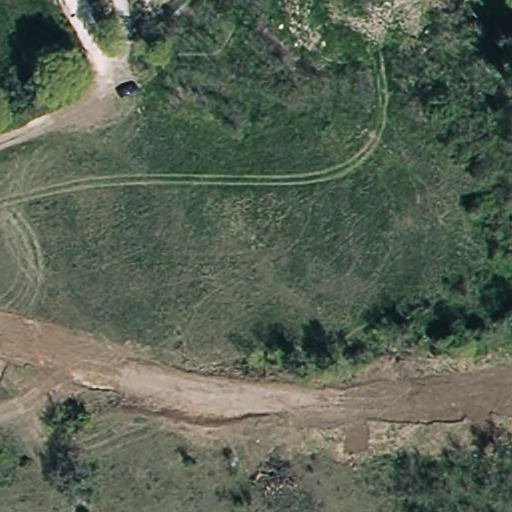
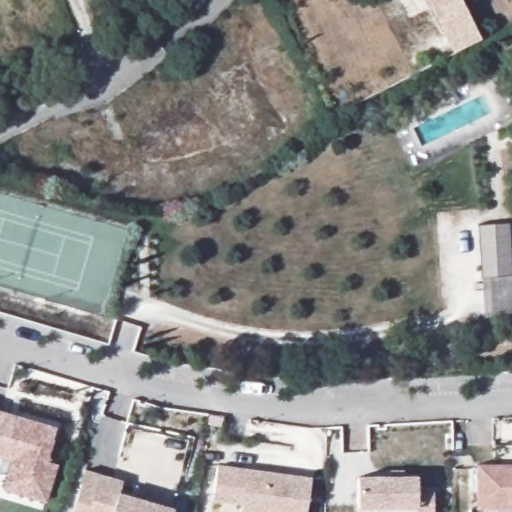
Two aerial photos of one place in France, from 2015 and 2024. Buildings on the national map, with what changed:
new [(480,39),(453,52),(430,9),(428,10),(422,0),(460,0),(480,39)]
demolished [(451,32),(432,0),(456,0),(469,22),(451,32)]
new [(510,233),(512,275),(512,286),(481,287),(479,235),(510,233)]
new [(512,286),(512,325),(483,326),(481,287),(512,286)]
new [(16,417),(55,429),(46,461),(56,464),(45,501),(4,489),(12,461),(0,457),(0,413),(7,415),(16,417)]
unchanged [(311,480),(306,512),(240,512),(241,505),(212,500),(217,466),(311,480)]
new [(477,509),(476,466),(512,466),(512,509),(477,509)]
new [(100,477),(89,512),(72,512),(84,473),(100,477)]
new [(357,480),(390,480),(390,474),(403,474),(403,480),(417,479),(417,491),(433,490),(433,512),(416,512),(416,510),(358,511),(357,480)]
new [(119,496),(135,501),(137,495),(151,499),(149,505),(171,512),(89,512),(100,477),(123,484),(119,496)]

